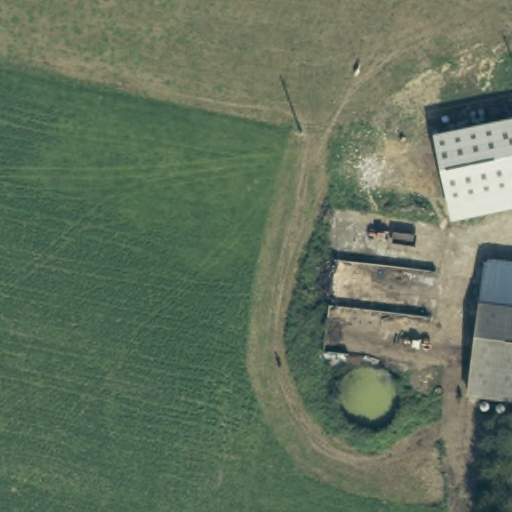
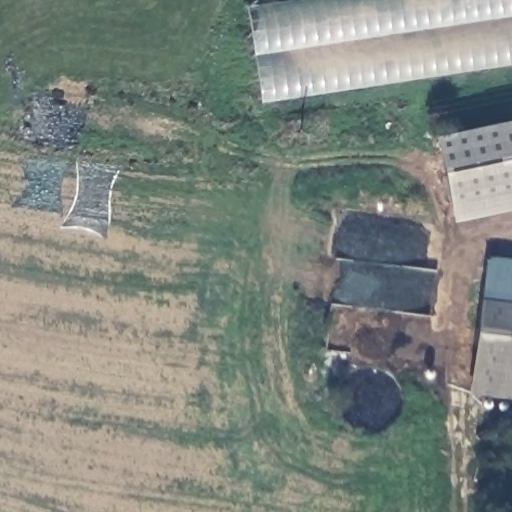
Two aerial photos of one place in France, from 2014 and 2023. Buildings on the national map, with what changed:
new [(287,0),(512,0),(512,64),(261,102),(247,6),(287,0)]
unchanged [(512,209),(452,220),(436,135),(512,119),(512,209)]
unchanged [(512,264),(512,301),(487,297),(492,261),(512,264)]
unchanged [(487,297),(512,301),(512,394),(474,389),(487,297)]

